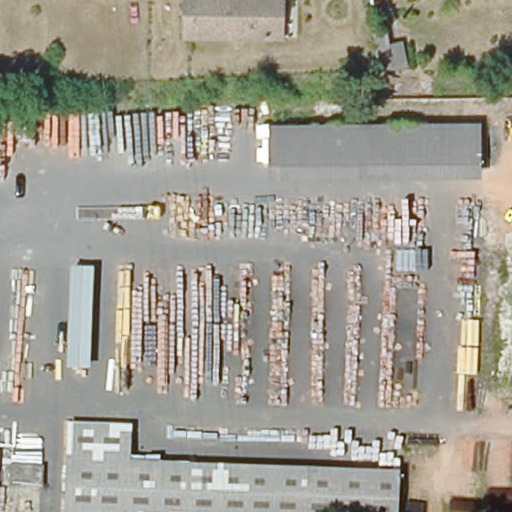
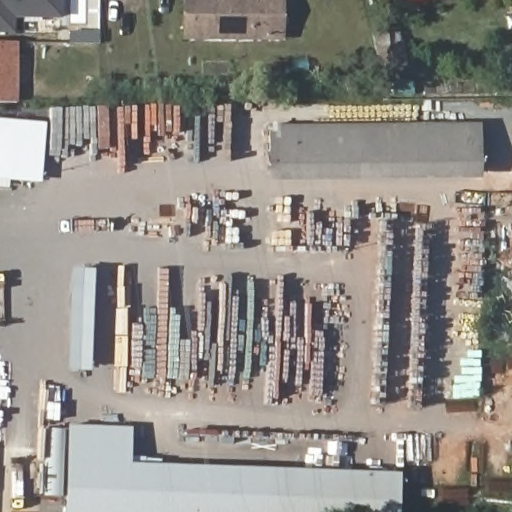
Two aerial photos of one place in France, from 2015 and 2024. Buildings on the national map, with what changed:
new [(61,19),(14,18),(14,34),(0,33),(0,0),(61,0),(61,19)]
unchanged [(280,37),(183,38),(183,0),(280,0),(280,37)]
unchanged [(375,75),(365,30),(383,27),(386,42),(400,40),(405,67),(375,75)]
new [(19,42),(20,102),(0,103),(0,42),(19,42)]
new [(46,122),(41,182),(0,179),(0,118),(46,122)]
unchanged [(477,135),(477,172),(271,171),(270,134),(477,135)]
new [(68,370),(71,268),(82,268),(94,269),(91,371),(79,371),(68,370)]
unchanged [(128,434),(126,472),(401,481),(400,512),(66,512),(67,432),(128,434)]

